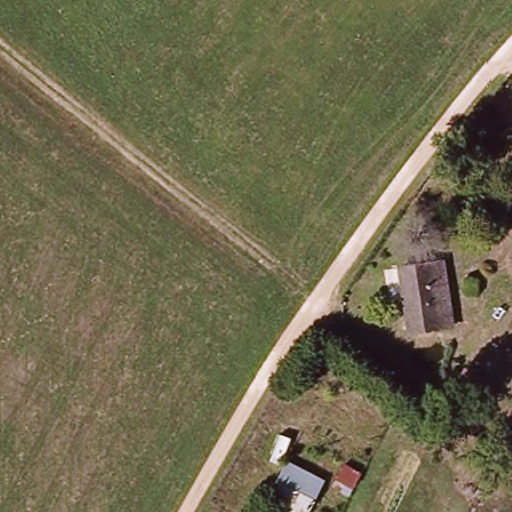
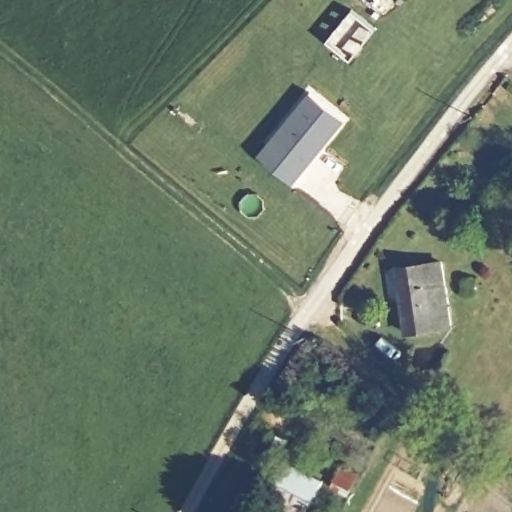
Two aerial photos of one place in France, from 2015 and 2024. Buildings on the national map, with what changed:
new [(311,90),(344,116),(292,180),(271,162),(259,152),(269,141),(311,90)]
unchanged [(450,329),(405,331),(404,286),(410,286),(409,267),(447,265),(450,329)]
unchanged [(311,512),(297,512),(275,501),(269,496),(285,465),(292,468),(324,485),(311,512)]

